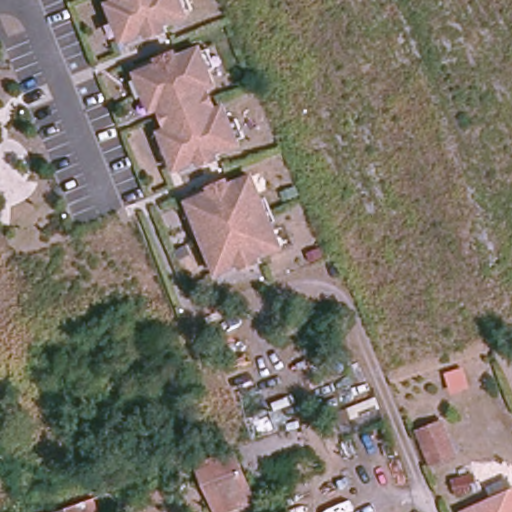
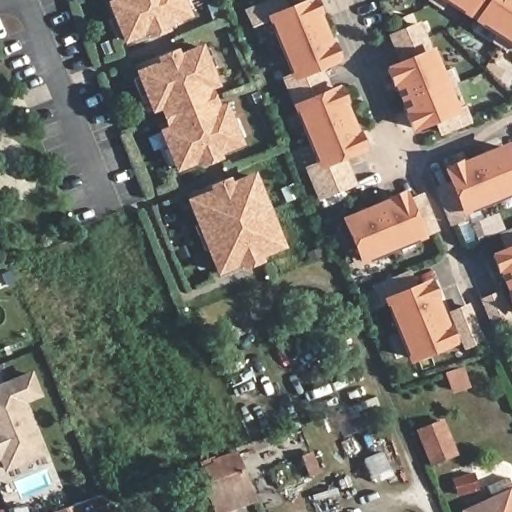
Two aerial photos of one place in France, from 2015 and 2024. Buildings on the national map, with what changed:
unchanged [(121,44),(104,0),(183,0),(190,19),(121,44)]
new [(302,165),(314,161),(290,103),(280,76),(290,74),(267,20),(249,27),(242,9),(265,0),(286,0),(288,4),(297,0),(314,0),(340,61),(325,67),(332,85),(337,84),(366,149),(346,157),(356,184),(317,201),(302,165)]
new [(512,0),(512,47),(441,0),(512,0)]
new [(441,135),(436,122),(411,133),(383,66),(397,60),(387,34),(420,21),(433,48),(442,71),(448,69),(455,84),(448,88),(457,107),(463,105),(471,123),(441,135)]
unchanged [(199,44),(241,146),(174,173),(135,70),(199,44)]
new [(465,213),(467,219),(450,226),(435,189),(447,184),(441,168),(507,143),(512,154),(512,195),(465,213)]
unchanged [(251,173),(283,250),(215,276),(185,199),(251,173)]
new [(423,238),(357,265),(338,217),(404,190),(407,197),(422,191),(439,230),(423,238)]
new [(488,254),(503,248),(497,232),(512,226),(512,312),(488,254)]
new [(408,363),(383,302),(377,304),(370,285),(411,269),(418,282),(429,278),(456,343),(408,363)]
new [(494,291),(508,325),(492,330),(479,298),(494,291)]
new [(465,305),(478,339),(463,346),(450,312),(465,305)]
new [(34,394),(17,401),(39,453),(2,468),(0,464),(0,384),(26,373),(34,394)]
unchanged [(442,424),(456,458),(433,467),(420,433),(442,424)]
unchanged [(311,453),(317,473),(288,483),(281,485),(274,466),(282,463),(311,453)]
unchanged [(236,461),(250,498),(231,506),(218,472),(206,477),(202,462),(214,459),(217,469),(236,461)]
unchanged [(472,472),(477,489),(460,494),(455,478),(472,472)]
unchanged [(512,488),(512,512),(463,512),(512,488)]

